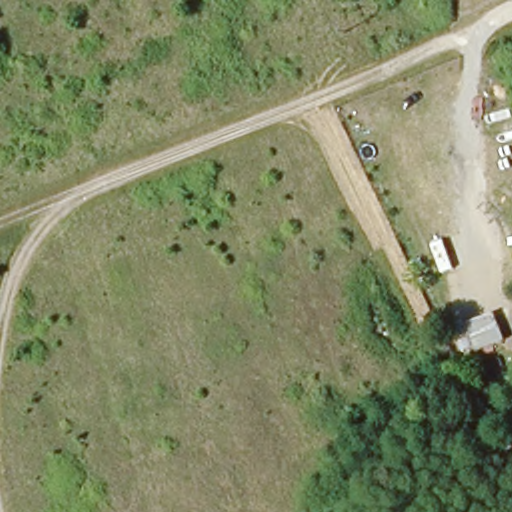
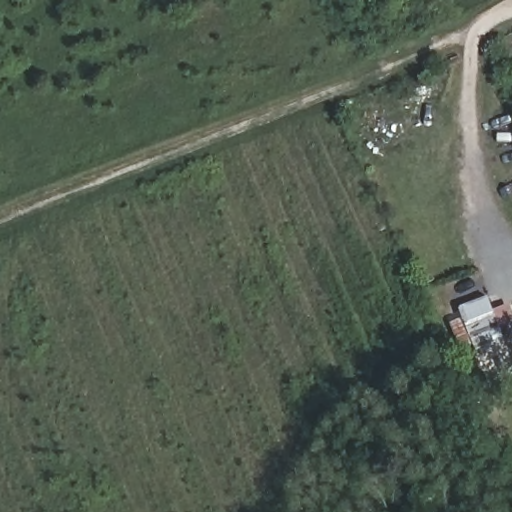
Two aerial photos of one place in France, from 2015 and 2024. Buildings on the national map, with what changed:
unchanged [(497,310),(511,345),(468,362),(458,326),(497,310)]

